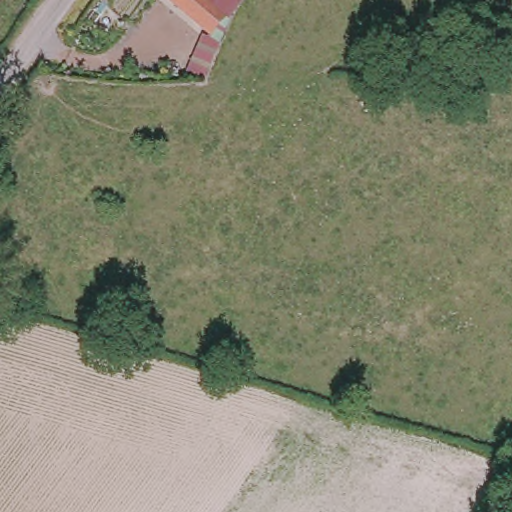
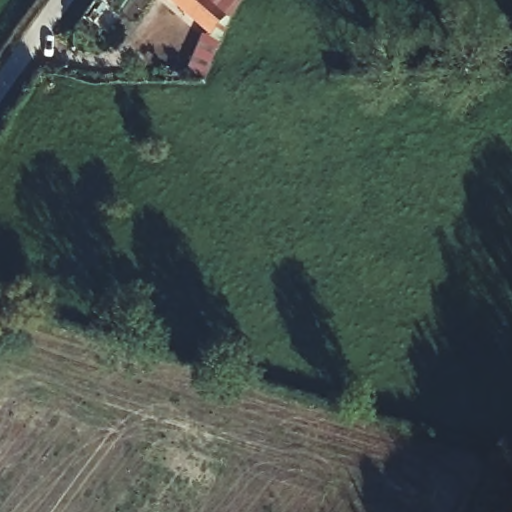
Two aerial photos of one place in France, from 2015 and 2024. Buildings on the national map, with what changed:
unchanged [(161,0),(237,0),(240,2),(215,36),(224,43),(204,82),(188,71),(201,34),(161,0)]

